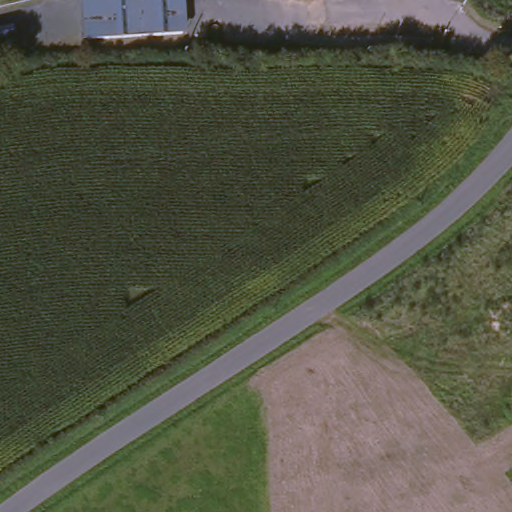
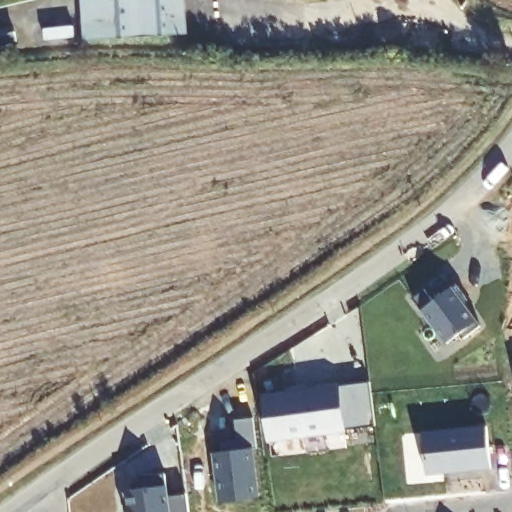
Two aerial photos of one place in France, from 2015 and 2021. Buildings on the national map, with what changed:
unchanged [(88,32),(88,0),(181,0),(181,31),(88,32)]
unchanged [(14,17),(18,37),(0,41),(0,19),(14,17)]
new [(423,288),(432,301),(454,284),(466,300),(462,302),(478,326),(461,338),(457,333),(445,343),(411,297),(423,288)]
new [(357,428),(342,430),(338,386),(369,382),(372,410),(374,427),(357,428)]
new [(305,451),(303,434),(266,438),(261,393),(282,391),(283,394),(313,391),(313,388),(338,386),(342,430),(323,432),(325,449),(305,451)]
new [(221,451),(220,441),(237,440),(235,420),(253,418),(256,448),(251,449),(256,498),(218,502),(214,452),(221,451)]
new [(487,427),(491,468),(426,475),(422,433),(487,427)]
new [(133,489),(132,483),(145,482),(144,476),(165,473),(167,496),(186,494),(188,512),(129,512),(129,511),(124,512),(122,490),(133,489)]

